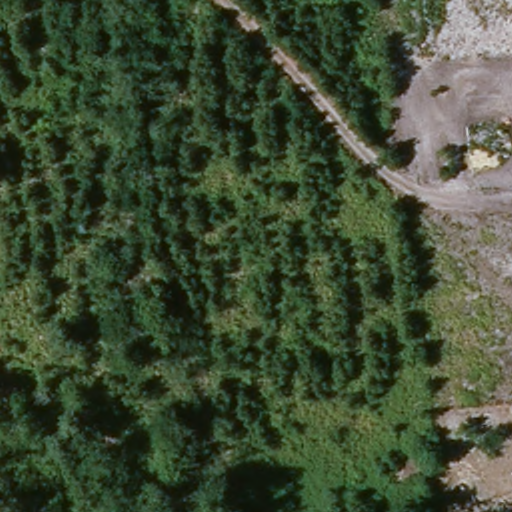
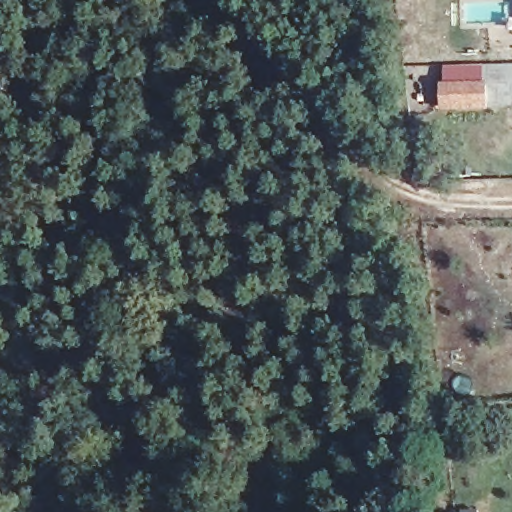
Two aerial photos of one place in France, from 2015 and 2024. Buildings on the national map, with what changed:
new [(439,66),(484,65),(487,110),(437,111),(439,66)]

